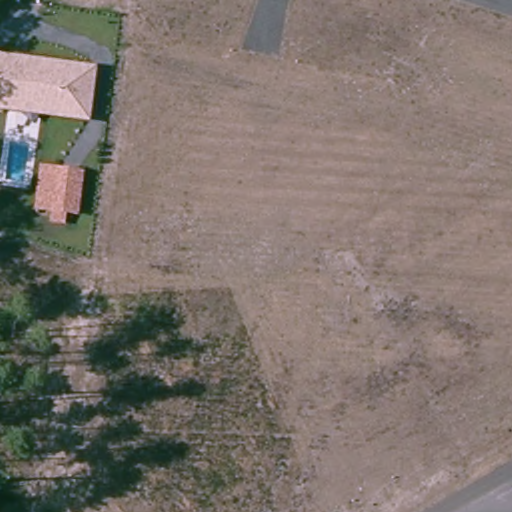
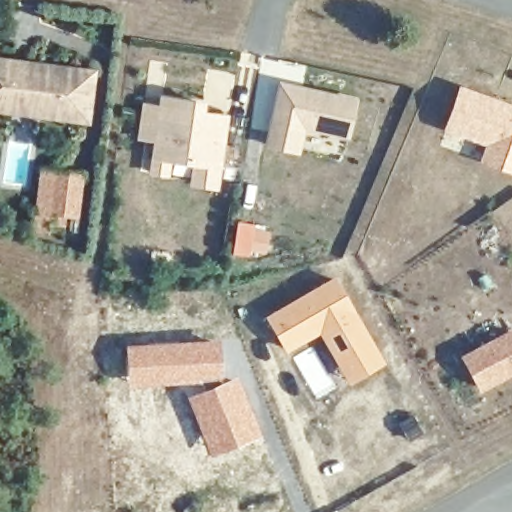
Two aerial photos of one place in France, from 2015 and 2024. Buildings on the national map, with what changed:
unchanged [(0,57),(97,69),(91,124),(0,114),(0,57)]
new [(358,99),(349,139),(305,129),(300,154),(263,146),(278,81),(358,99)]
new [(512,104),(512,174),(479,163),(487,144),(443,130),(460,85),(512,104)]
new [(158,104),(160,94),(206,101),(205,111),(230,114),(219,189),(190,187),(192,165),(172,163),(170,179),(149,174),(154,141),(137,139),(143,103),(158,104)]
unchanged [(33,214),(39,168),(86,172),(80,218),(33,214)]
new [(269,259),(249,258),(231,255),(236,220),(255,224),(274,229),(269,259)]
new [(335,274),(386,362),(349,384),(317,334),(286,353),(263,315),(335,274)]
new [(480,394),(460,355),(512,326),(512,376),(480,394)]
new [(221,338),(222,377),(187,383),(129,387),(125,344),(221,338)]
new [(237,374),(263,435),(211,457),(186,396),(237,374)]

